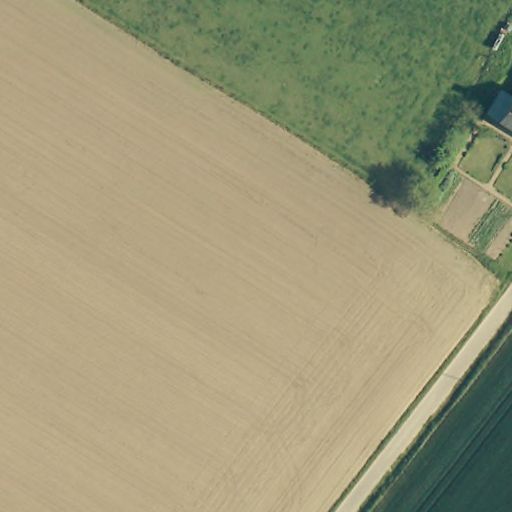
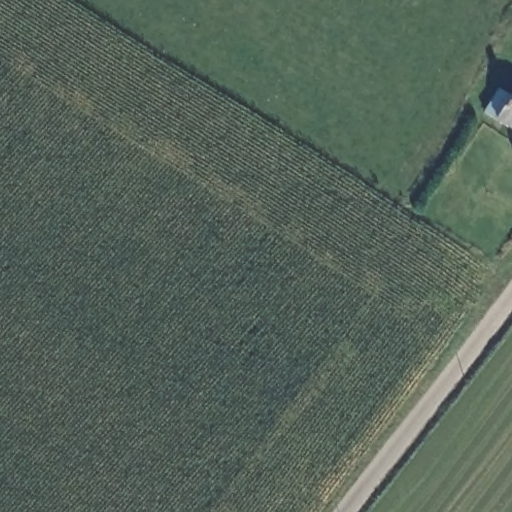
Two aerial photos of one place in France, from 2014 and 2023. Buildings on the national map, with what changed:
unchanged [(512,96),(512,126),(490,112),(500,91),(512,96)]

